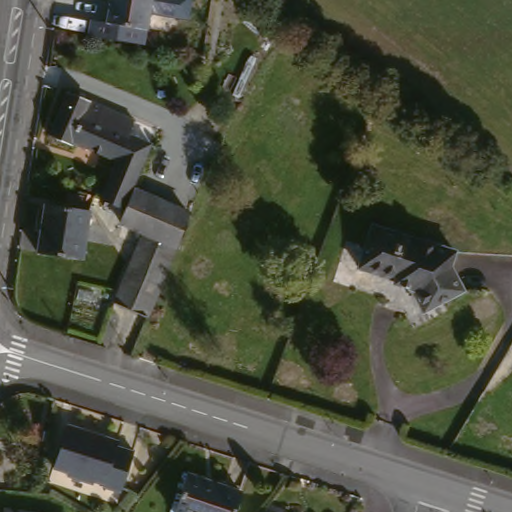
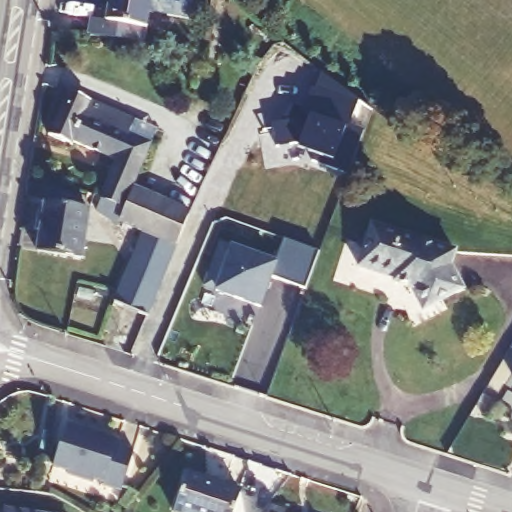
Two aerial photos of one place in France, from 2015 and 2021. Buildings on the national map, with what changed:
unchanged [(105,28),(108,0),(149,0),(144,35),(105,28)]
new [(292,105),(295,107),(303,110),(311,88),(315,90),(322,72),(359,100),(357,105),(350,126),(364,131),(348,175),(311,162),(315,152),(295,144),(276,148),(272,125),(280,123),(292,105)]
unchanged [(182,247),(162,294),(153,316),(118,303),(146,232),(124,222),(126,218),(130,207),(106,197),(120,164),(76,143),(74,146),(53,137),(70,94),(138,123),(134,136),(154,146),(137,191),(195,217),(182,247)]
unchanged [(82,259),(36,250),(45,205),(88,213),(82,259)]
unchanged [(458,254),(456,271),(446,287),(427,305),(420,294),(397,290),(401,279),(365,268),(378,230),(458,254)]
new [(220,244),(275,264),(283,240),(319,253),(306,290),(271,277),(260,307),(205,287),(220,244)]
unchanged [(116,437),(114,443),(134,449),(120,489),(102,484),(104,480),(93,476),(91,483),(65,474),(66,469),(52,464),(65,422),(116,437)]
unchanged [(230,512),(170,512),(169,511),(187,473),(238,496),(230,512)]

